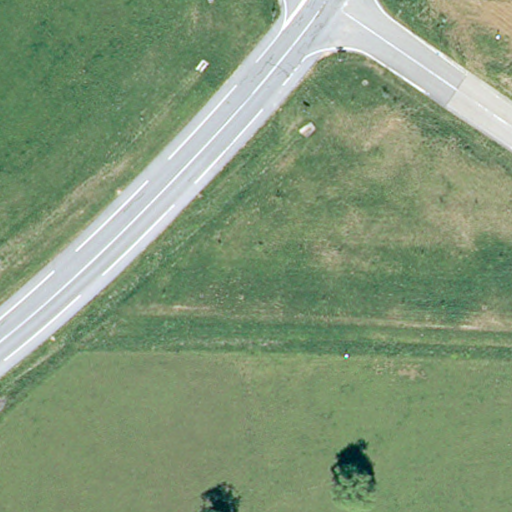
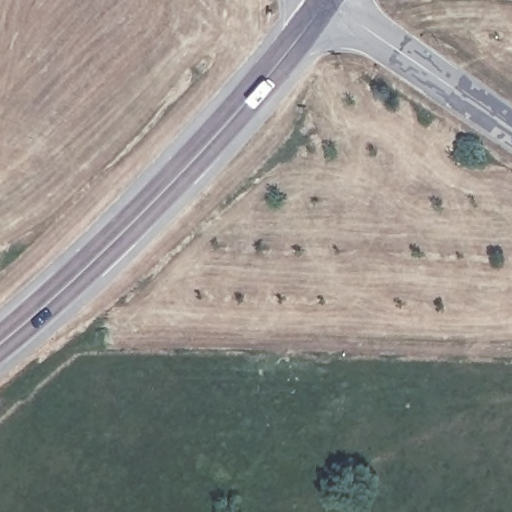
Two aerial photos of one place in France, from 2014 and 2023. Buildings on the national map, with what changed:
[]

